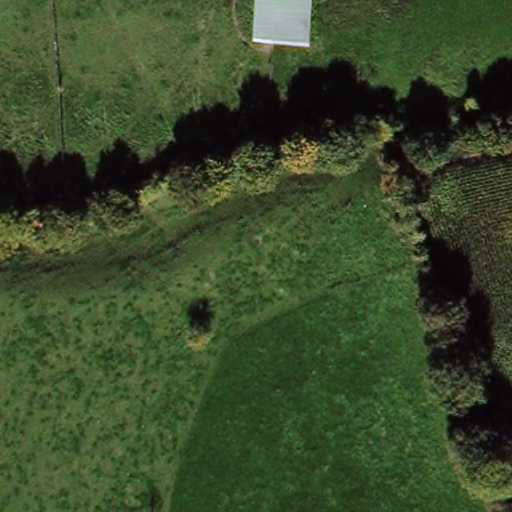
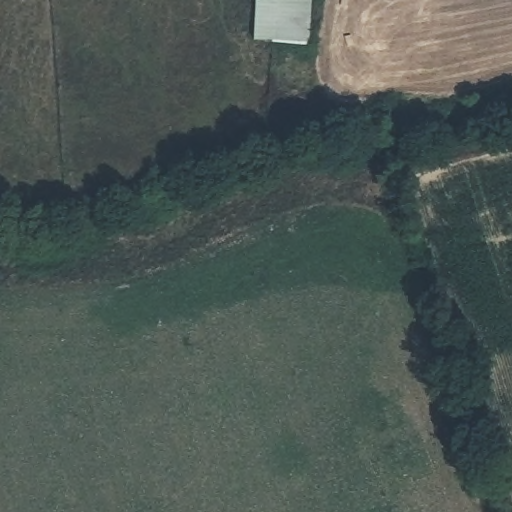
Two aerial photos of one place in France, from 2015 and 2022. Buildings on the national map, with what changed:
unchanged [(313,45),(260,47),(258,0),(311,0),(313,45)]

